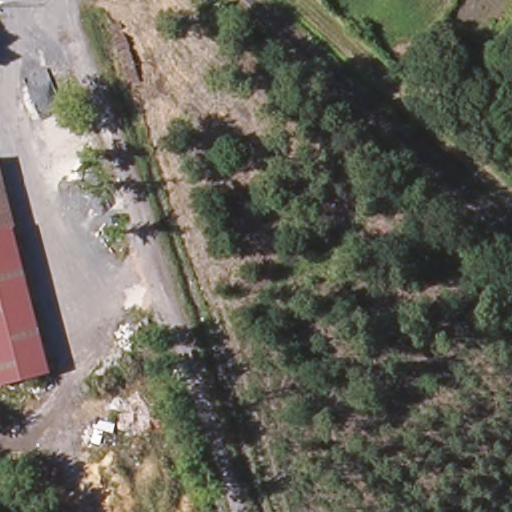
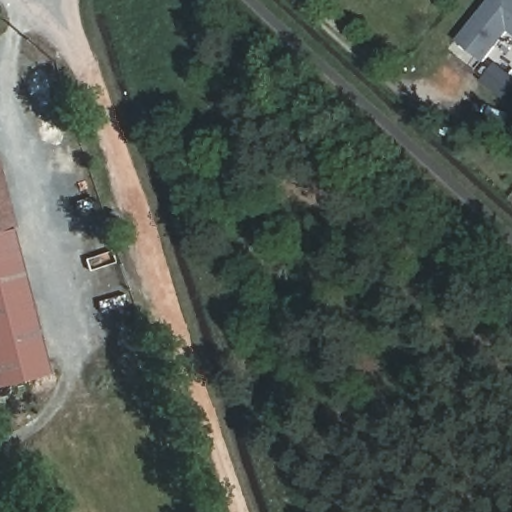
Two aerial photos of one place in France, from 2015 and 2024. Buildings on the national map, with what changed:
new [(512,0),(512,33),(508,30),(485,63),(452,48),(490,0),(512,0)]
unchanged [(11,229),(0,233),(0,187),(5,205),(11,229)]
unchanged [(19,258),(0,264),(0,233),(11,229),(19,258)]
unchanged [(0,388),(0,264),(19,258),(50,374),(0,388)]

